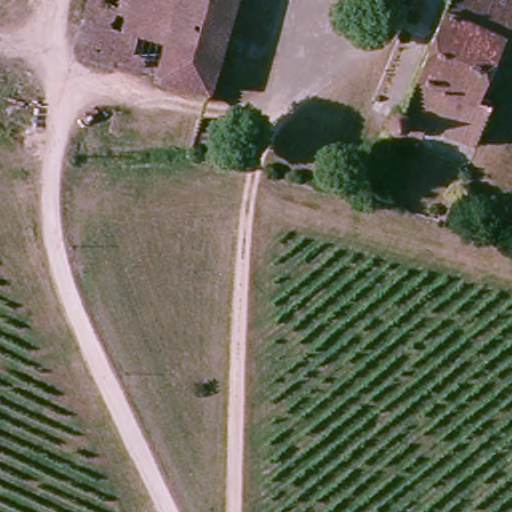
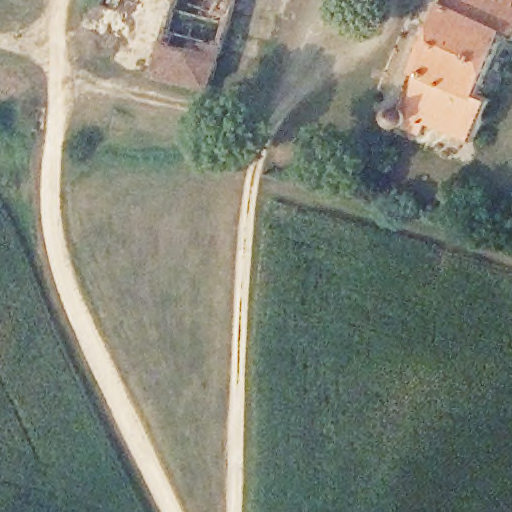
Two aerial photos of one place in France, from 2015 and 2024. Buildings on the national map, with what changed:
unchanged [(162,68),(167,52),(183,0),(238,0),(214,85),(162,68)]
unchanged [(492,84),(503,91),(487,133),(424,106),(418,111),(412,115),(406,115),(402,113),(399,110),(397,106),(397,101),(397,97),(400,93),(402,90),(407,88),(411,88),(415,89),(451,0),(512,0),(512,30),(492,84)]

